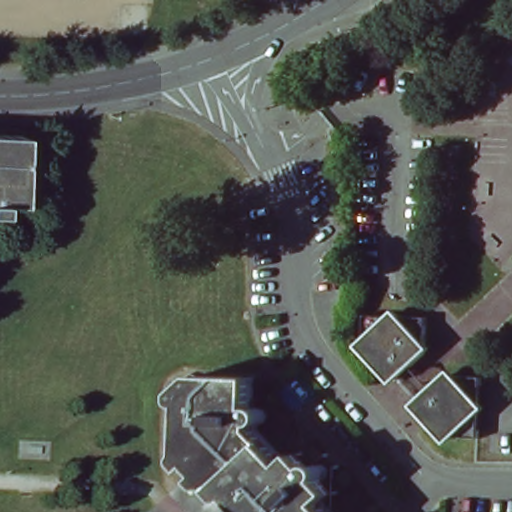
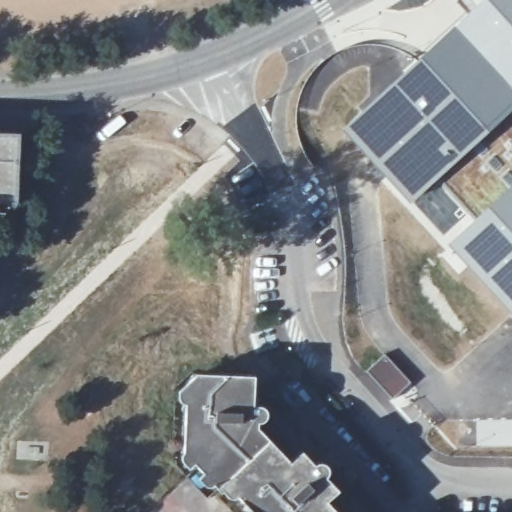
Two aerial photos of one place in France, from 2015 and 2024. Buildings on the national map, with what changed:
new [(321,102),(453,0),(512,0),(512,318),(321,102)]
unchanged [(18,150),(16,204),(0,203),(0,134),(18,135),(18,150)]
demolished [(403,356),(383,356),(375,364),(363,350),(364,315),(424,317),(424,353),(411,365),(403,356)]
unchanged [(219,483),(212,490),(178,452),(181,385),(192,375),(249,377),(248,407),(254,407),(259,410),(262,414),(262,417),(259,422),(256,425),(253,425),(253,430),(297,477),(311,465),(316,464),(322,467),(324,470),(324,475),(321,479),(309,490),(330,512),(245,512),(219,483)]
demolished [(438,415),(439,396),(431,387),(444,375),(480,376),(478,437),(442,436),(429,422),(438,415)]

